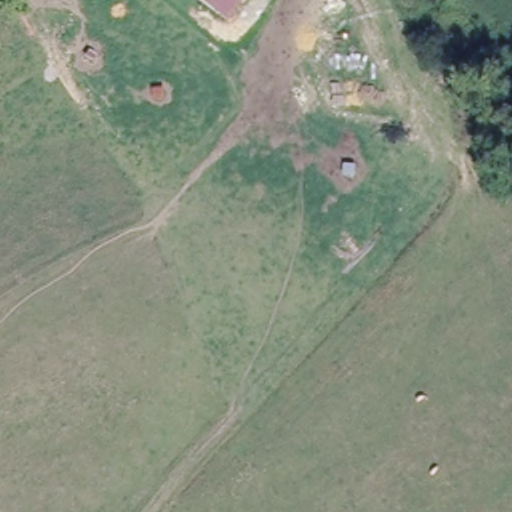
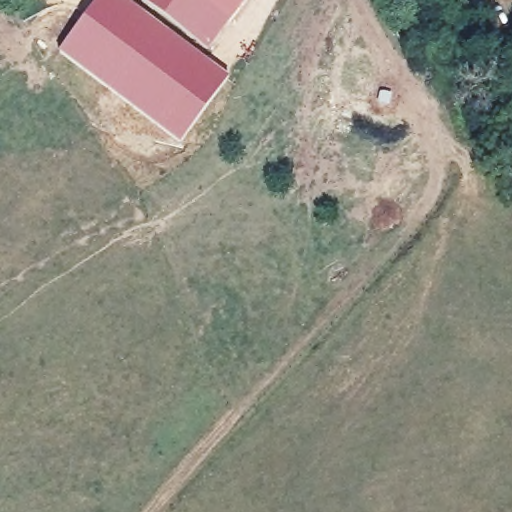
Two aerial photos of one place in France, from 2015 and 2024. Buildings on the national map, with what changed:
new [(229,76),(180,143),(56,54),(97,0),(125,0),(229,76)]
new [(229,22),(207,51),(138,0),(200,0),(229,22)]
new [(229,22),(200,0),(245,0),(229,22)]

